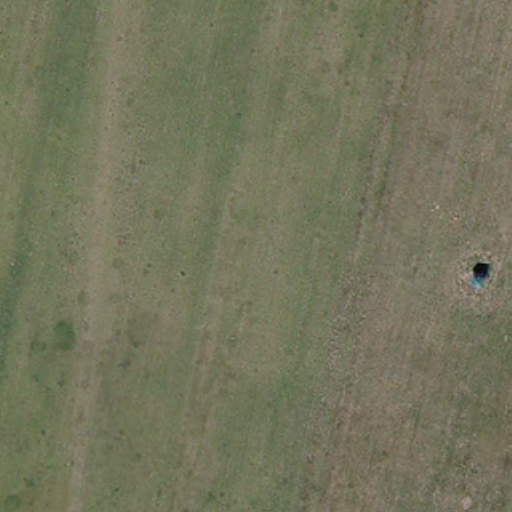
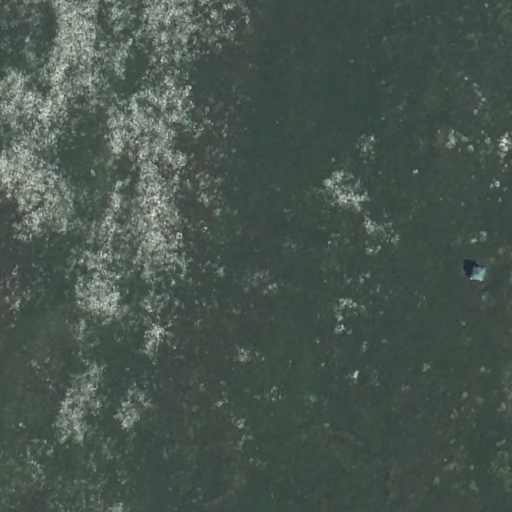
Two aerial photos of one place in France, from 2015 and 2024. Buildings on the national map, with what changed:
unchanged [(481,265),(484,265),(482,280),(467,277),(470,263),(481,265)]

